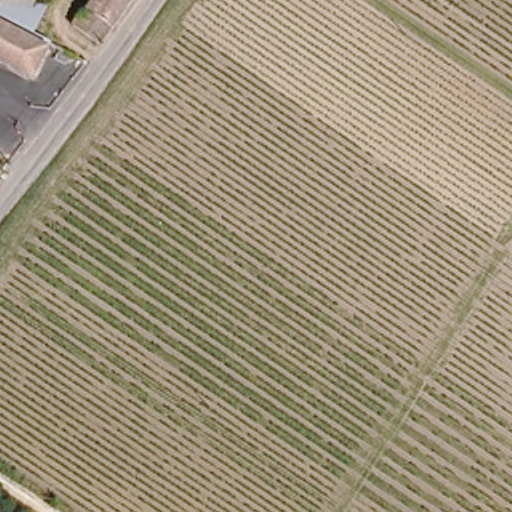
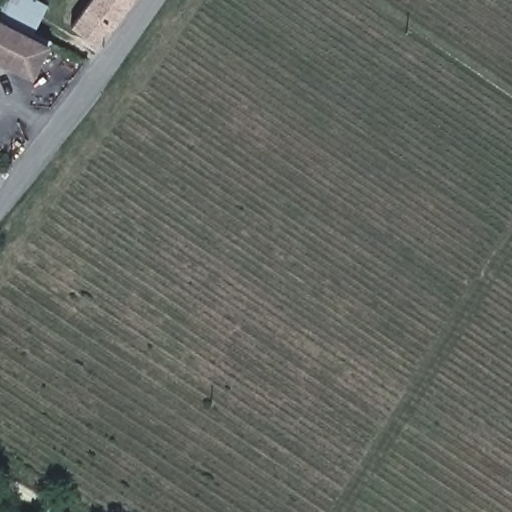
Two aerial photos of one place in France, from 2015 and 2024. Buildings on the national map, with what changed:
unchanged [(19,32),(0,22),(0,0),(16,0),(30,8),(19,32)]
unchanged [(96,39),(70,19),(76,10),(83,0),(127,0),(96,39)]
unchanged [(25,78),(0,65),(0,22),(19,32),(45,46),(25,78)]

